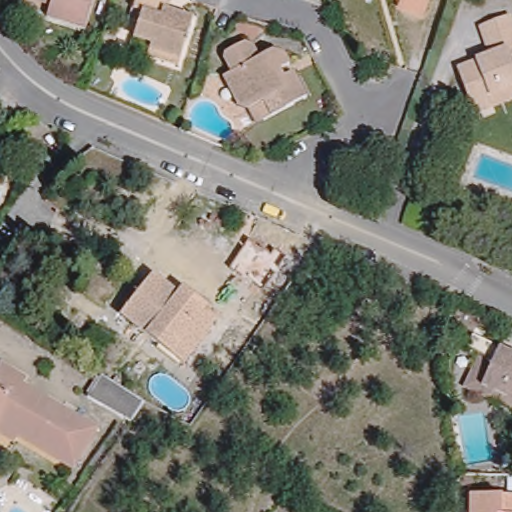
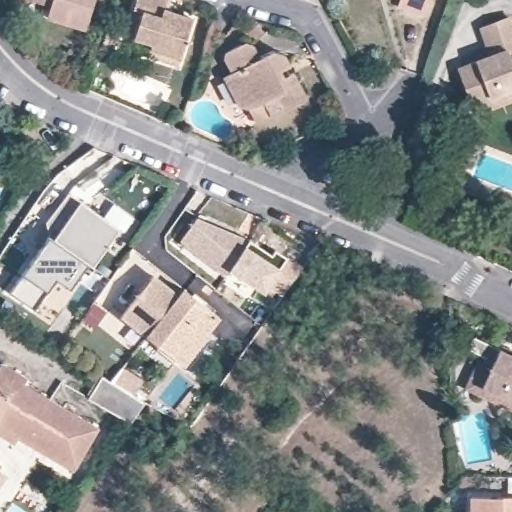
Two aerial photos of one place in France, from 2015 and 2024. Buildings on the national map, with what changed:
unchanged [(48,14),(51,1),(47,0),(93,0),(85,25),(48,14)]
unchanged [(151,43),(152,39),(135,34),(143,7),(134,4),(135,0),(165,0),(164,2),(173,5),(195,13),(182,54),(180,61),(148,51),(151,43)]
unchanged [(404,1),(404,0),(432,0),(428,10),(404,1)]
unchanged [(467,77),(461,63),(473,58),(496,50),(486,22),(512,12),(512,87),(475,100),(467,77)]
unchanged [(308,97),(257,124),(249,108),(238,107),(223,77),(232,73),(224,59),(224,53),(246,41),(253,43),(261,57),(273,51),(285,55),(290,64),(287,66),(291,74),(295,73),(308,97)]
unchanged [(479,110),(475,100),(512,87),(512,98),(479,110)]
new [(69,193),(119,228),(92,266),(88,263),(49,235),(47,221),(69,193)]
new [(283,296),(268,287),(265,292),(230,269),(224,276),(180,241),(198,216),(248,239),(271,254),(275,249),(287,257),(302,265),(283,296)]
new [(49,235),(88,263),(71,287),(56,277),(35,308),(10,291),(49,235)]
unchanged [(185,362),(176,355),(121,311),(154,269),(179,289),(183,283),(220,312),(207,328),(210,330),(185,362)]
unchanged [(487,387),(497,363),(504,349),(512,353),(512,400),(487,387)]
unchanged [(487,387),(512,400),(512,408),(469,389),(482,357),(497,363),(487,387)]
unchanged [(0,441),(0,367),(13,374),(19,378),(15,385),(89,429),(67,469),(10,436),(5,443),(0,441)]
unchanged [(145,403),(131,422),(90,398),(103,375),(145,403)]
unchanged [(512,497),(512,512),(475,512),(475,497),(512,497)]

